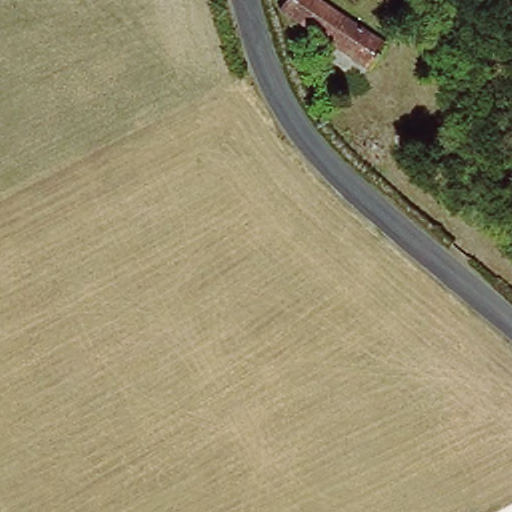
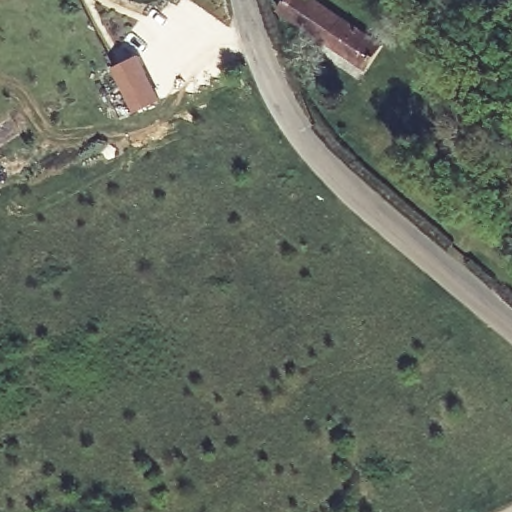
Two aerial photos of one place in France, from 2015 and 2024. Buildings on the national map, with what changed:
unchanged [(311,0),(347,24),(331,48),(283,16),(294,0),(311,0)]
unchanged [(331,48),(347,24),(385,49),(369,73),(331,48)]
unchanged [(500,89),(478,75),(497,46),(512,56),(512,71),(500,89)]
new [(155,91),(158,90),(161,95),(158,96),(160,101),(137,113),(114,68),(138,55),(155,91)]
unchanged [(416,130),(407,146),(392,136),(400,121),(416,130)]

